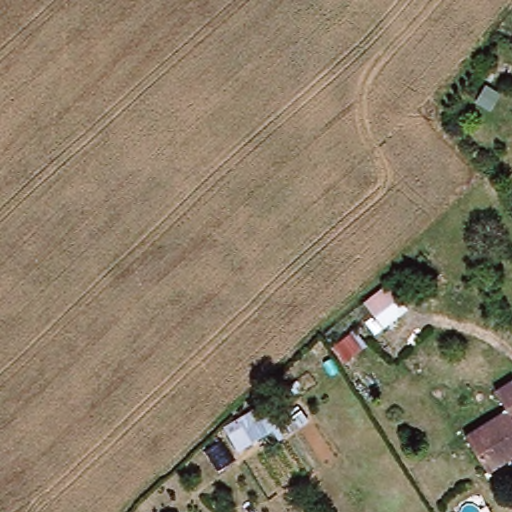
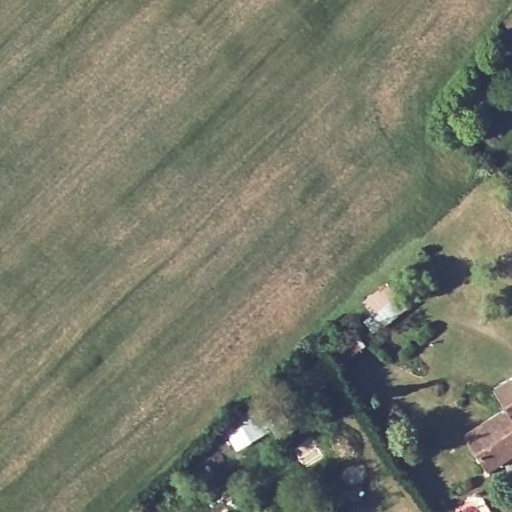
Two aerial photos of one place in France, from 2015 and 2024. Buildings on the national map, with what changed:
unchanged [(505,410),(496,395),(512,383),(512,457),(486,474),(464,438),(505,410)]

